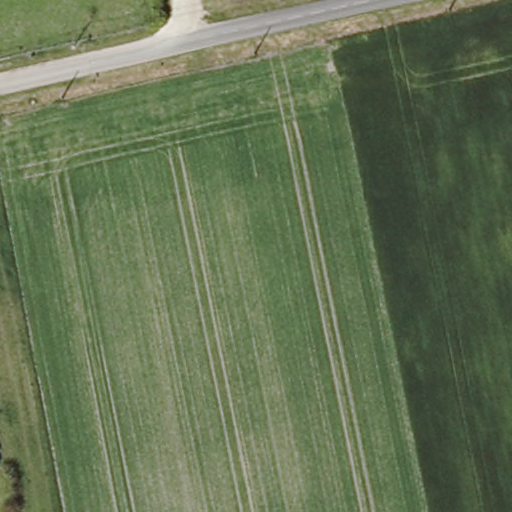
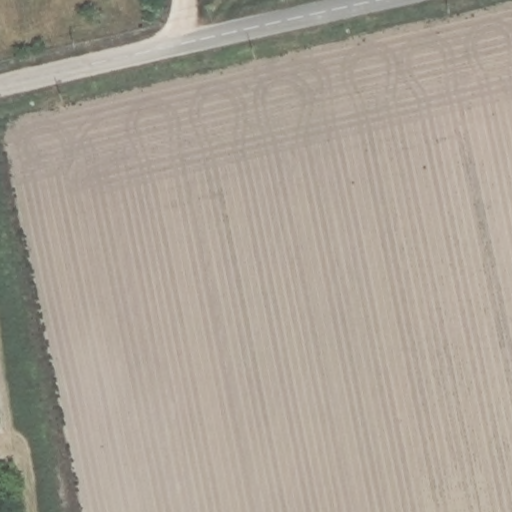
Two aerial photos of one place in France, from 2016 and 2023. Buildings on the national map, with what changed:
[]

